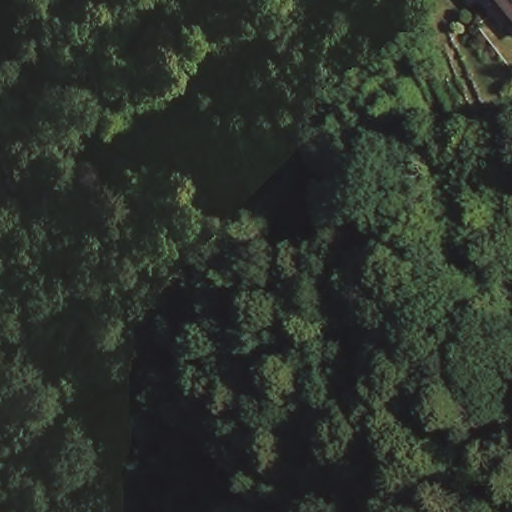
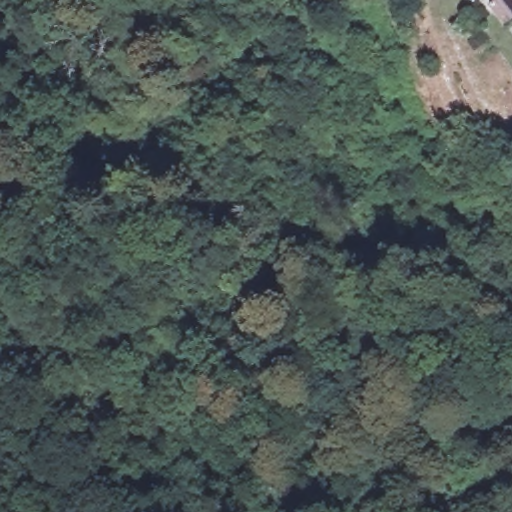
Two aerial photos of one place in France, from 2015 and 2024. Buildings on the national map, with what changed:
unchanged [(512,0),(512,6),(508,0),(512,0)]

